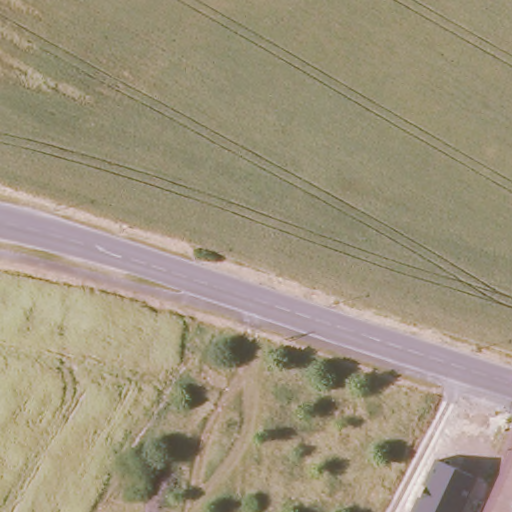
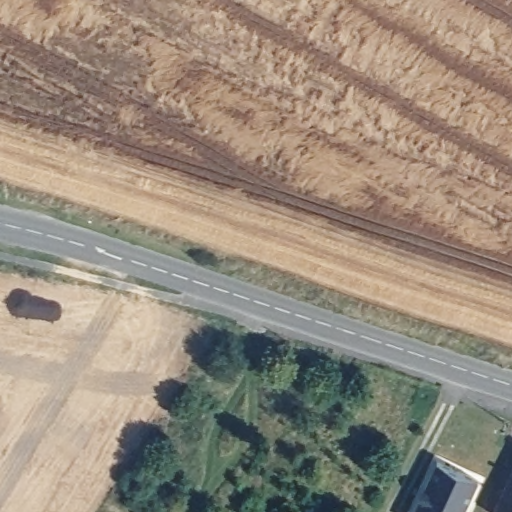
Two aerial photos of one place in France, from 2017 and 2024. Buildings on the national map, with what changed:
unchanged [(478,479),(463,512),(413,512),(436,460),(478,479)]
unchanged [(499,512),(512,484),(512,512),(499,512)]

